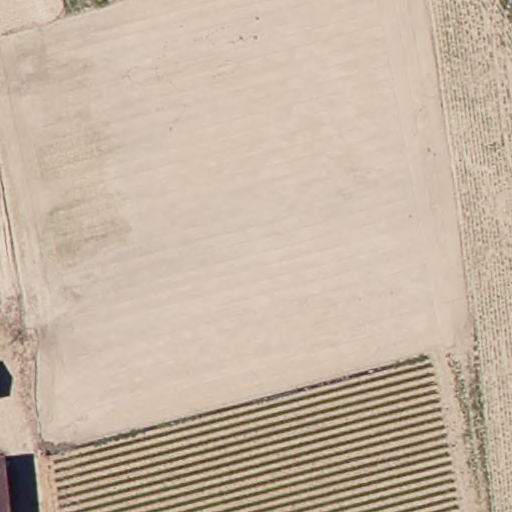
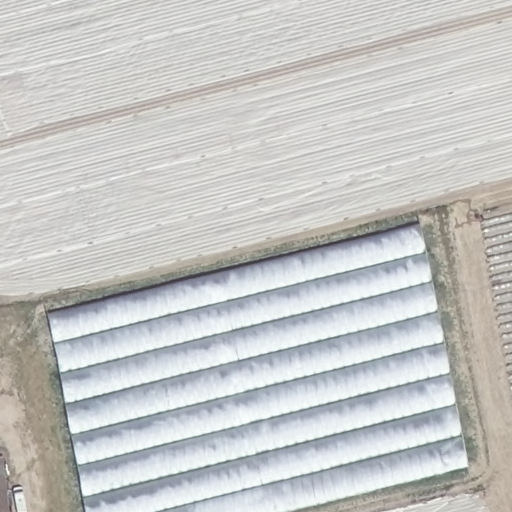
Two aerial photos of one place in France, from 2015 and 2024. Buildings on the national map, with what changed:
new [(420,226),(468,468),(289,512),(86,512),(49,315),(420,226)]
unchanged [(4,464),(11,512),(0,512),(0,464),(4,464)]

